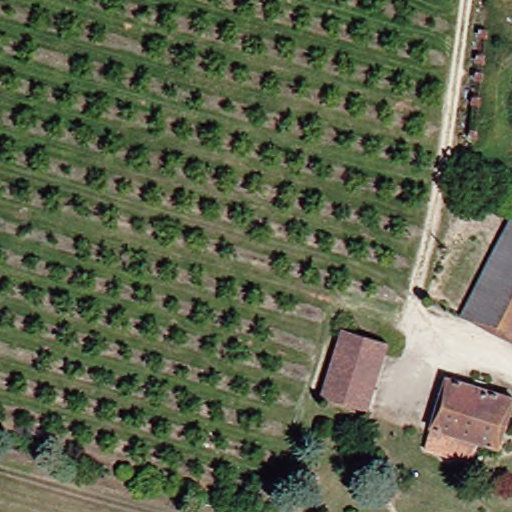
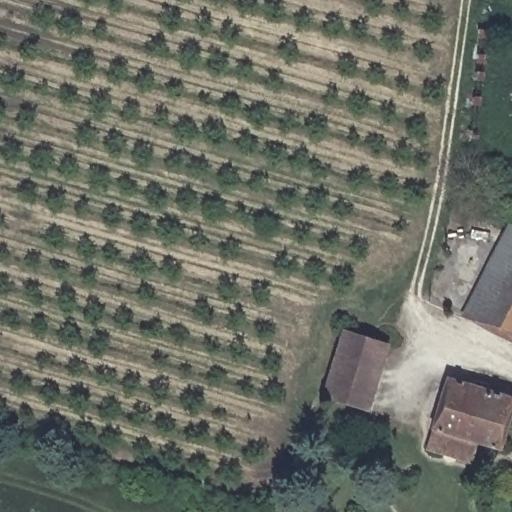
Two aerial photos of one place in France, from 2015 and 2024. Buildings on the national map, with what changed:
unchanged [(512,243),(512,292),(502,287),(495,298),(484,295),(512,243)]
unchanged [(495,298),(502,287),(512,292),(512,333),(475,315),(484,295),(495,298)]
unchanged [(329,392),(355,327),(403,345),(379,410),(329,392)]
unchanged [(442,447),(444,431),(459,381),(512,397),(512,448),(512,450),(485,443),(480,462),(442,447)]

